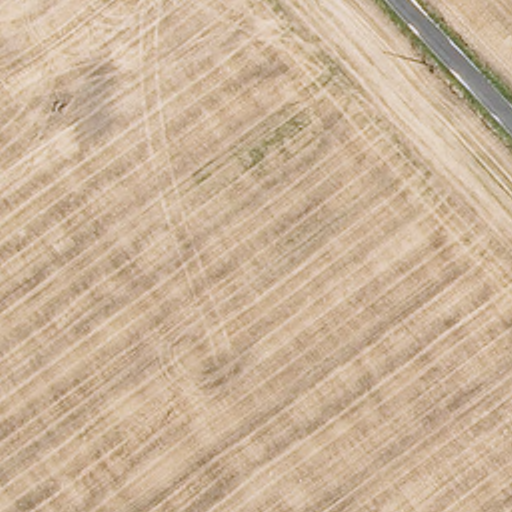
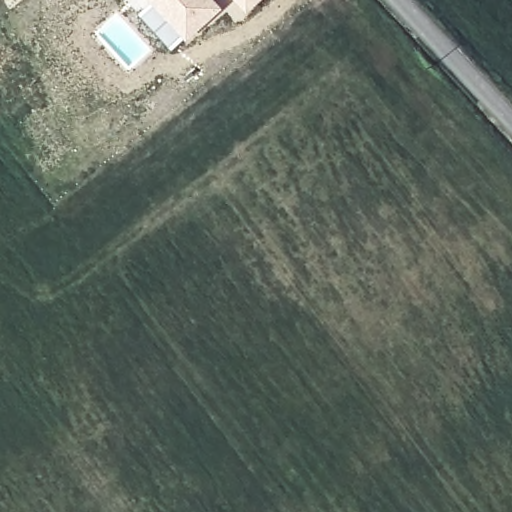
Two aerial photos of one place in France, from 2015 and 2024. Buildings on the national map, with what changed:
new [(172,51),(125,0),(147,0),(187,41),(172,51)]
new [(187,41),(147,0),(217,0),(225,9),(187,41)]
new [(235,0),(262,0),(248,13),(235,0)]

